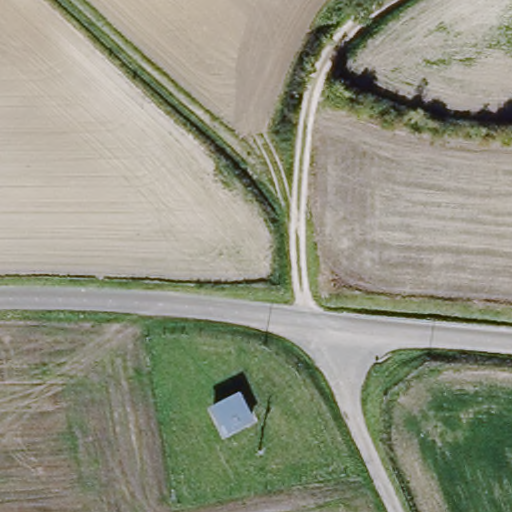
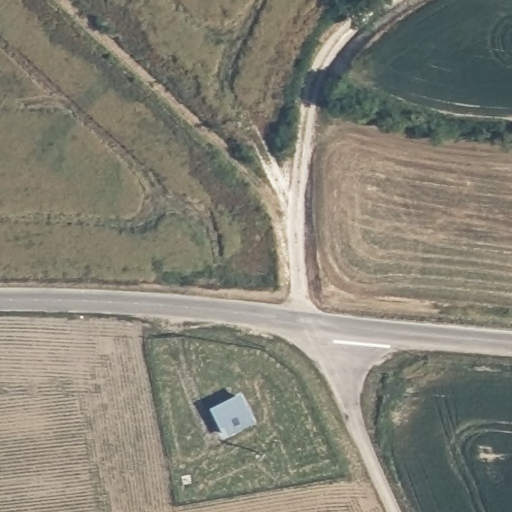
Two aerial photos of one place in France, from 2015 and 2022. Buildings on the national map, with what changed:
unchanged [(245,397),(257,421),(228,434),(217,411),(245,397)]

